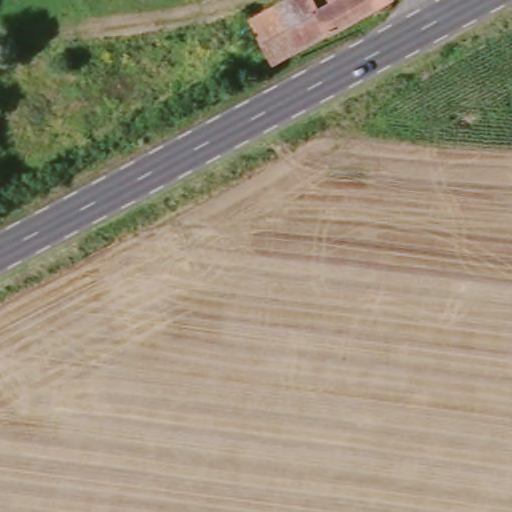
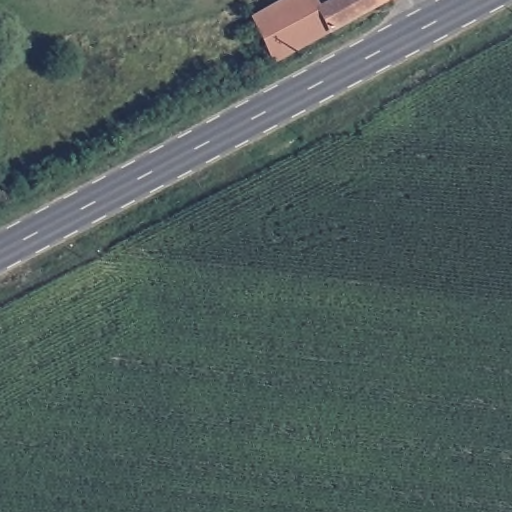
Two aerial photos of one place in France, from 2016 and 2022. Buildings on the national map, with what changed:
unchanged [(286,0),(317,0),(321,10),(339,0),(395,0),(273,63),(253,17),(286,0)]

